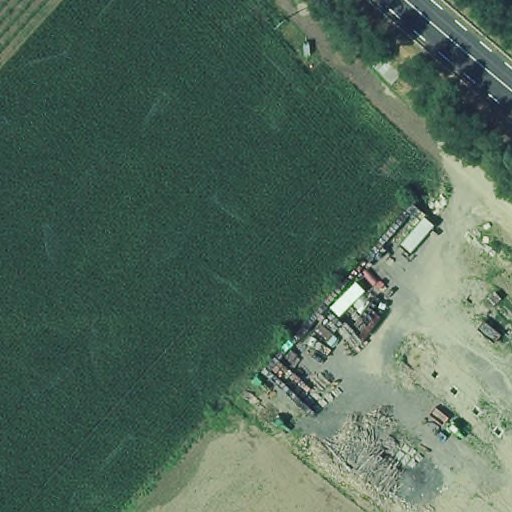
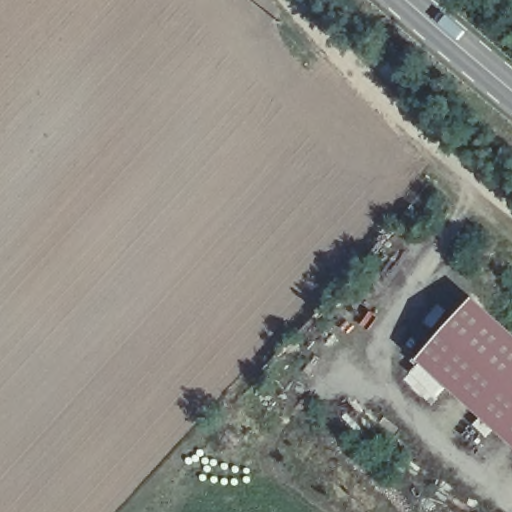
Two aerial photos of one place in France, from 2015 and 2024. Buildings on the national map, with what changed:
new [(473,296),(512,332),(512,446),(417,360),(473,296)]

